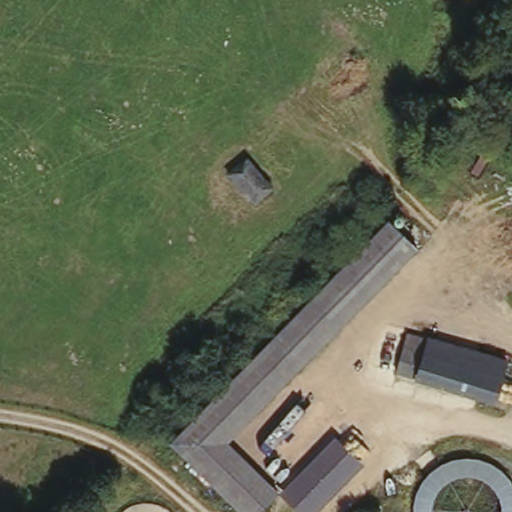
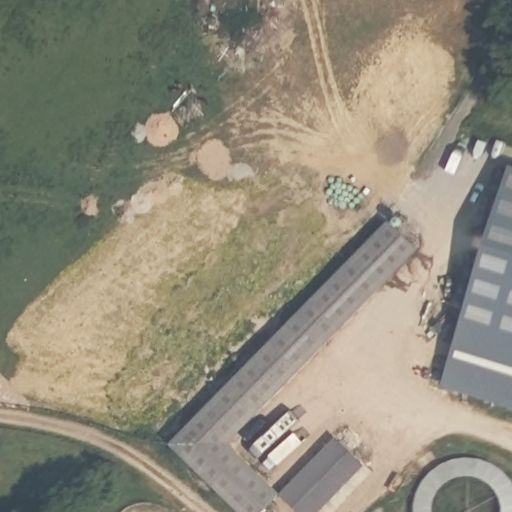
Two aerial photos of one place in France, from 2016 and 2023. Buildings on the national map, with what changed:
demolished [(248,204),(220,171),(244,152),(272,184),(248,204)]
new [(512,412),(442,390),(512,172),(512,173),(512,412)]
unchanged [(417,230),(417,253),(225,444),(273,488),(253,512),(232,512),(165,446),(403,208),(417,230)]
demolished [(504,405),(491,402),(412,379),(392,373),(402,334),(502,361),(497,380),(510,383),(504,405)]
unchanged [(336,437),(365,465),(318,512),(299,512),(280,494),(336,437)]
unchanged [(416,484),(426,473),(437,467),(453,460),(483,462),(497,468),(507,478),(512,488),(512,512),(498,512),(499,506),(498,498),(495,492),(485,484),(472,481),(461,480),(452,483),(444,487),(438,493),(433,503),(433,512),(412,512),(412,495),(416,484)]

